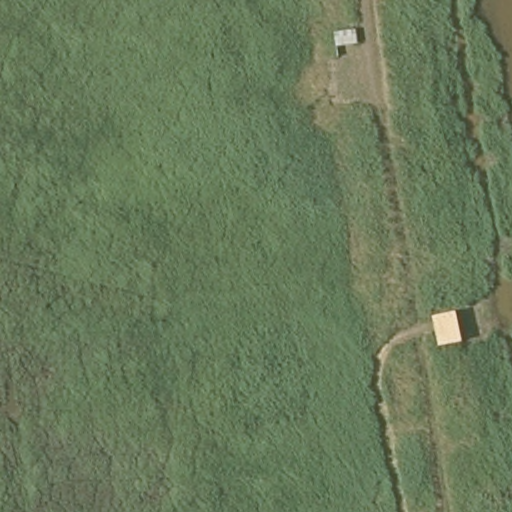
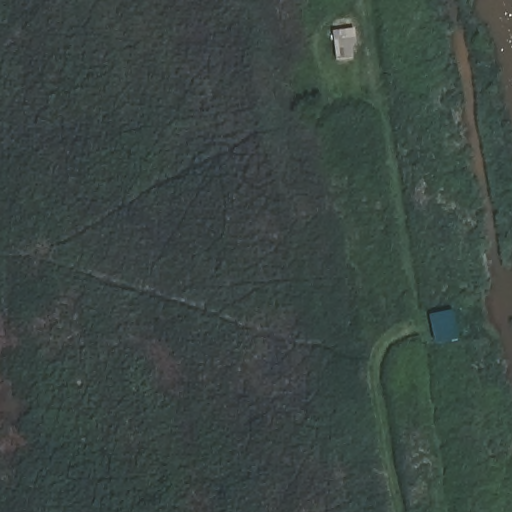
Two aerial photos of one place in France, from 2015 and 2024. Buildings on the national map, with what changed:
unchanged [(461,336),(435,343),(428,313),(454,310),(461,336)]

